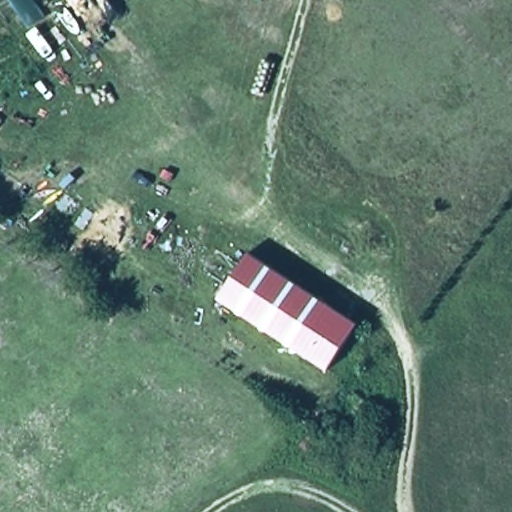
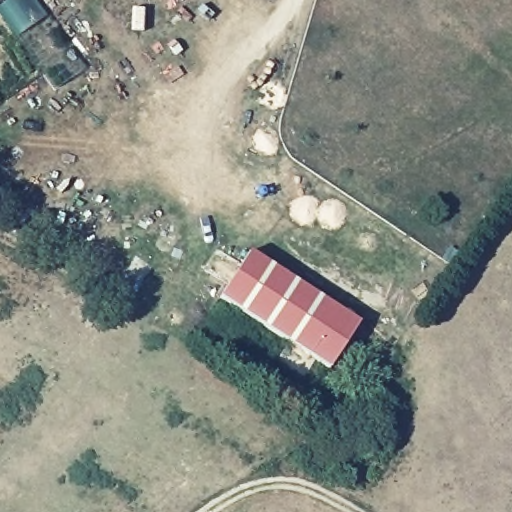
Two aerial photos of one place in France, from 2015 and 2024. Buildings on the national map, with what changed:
unchanged [(220,295),(250,249),(360,320),(329,366),(220,295)]

